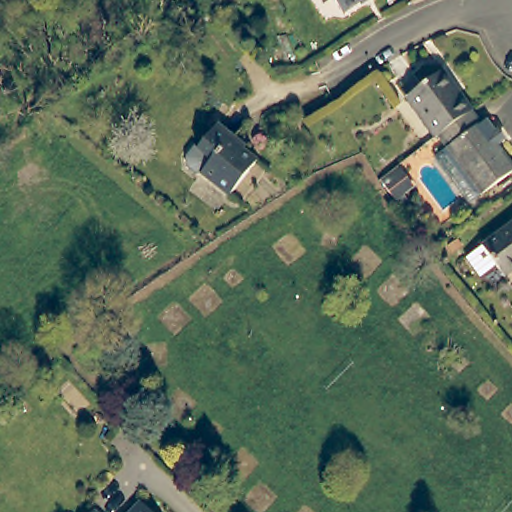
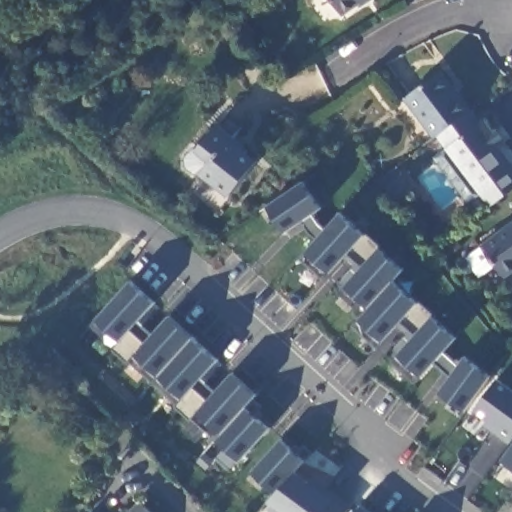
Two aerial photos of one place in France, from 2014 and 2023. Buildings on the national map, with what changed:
unchanged [(406,96),(442,70),(472,111),(464,117),(437,137),(406,96)]
unchanged [(451,183),(434,159),(446,150),(437,137),(464,117),(472,111),(482,124),(488,120),(496,131),(497,130),(506,141),(499,146),(512,164),(512,173),(480,196),(480,195),(467,205),(451,183)]
unchanged [(195,146),(198,148),(218,125),(246,149),(244,151),(257,162),(227,196),(201,173),(197,173),(188,165),(188,154),(195,146)]
unchanged [(400,194),(405,202),(396,208),(381,185),(378,181),(392,170),(396,174),(406,189),(400,194)]
new [(463,410),(439,391),(452,374),(435,358),(421,374),(413,381),(391,359),(398,351),(411,338),(396,324),(382,338),(378,344),(354,323),(363,313),(339,292),(345,284),(355,272),(341,259),(332,270),(325,278),(302,256),(307,249),(318,237),(308,231),(301,220),(284,231),(268,205),(305,181),(320,206),(312,212),(318,221),(326,226),(341,211),(404,266),(394,280),(457,337),(445,350),(458,363),(465,354),(490,375),(463,410)]
unchanged [(512,226),(512,273),(500,281),(492,271),(477,282),(462,263),(512,226)]
unchanged [(460,241),(465,247),(451,257),(447,250),(460,241)]
new [(96,317),(130,278),(156,301),(139,321),(153,334),(171,314),(217,359),(202,376),(215,390),(232,370),(257,394),(247,407),(270,427),(240,461),(217,439),(193,417),(190,420),(174,406),(177,403),(128,360),(126,363),(110,349),(113,346),(88,325),(96,317)]
new [(512,438),(504,441),(483,424),(487,419),(475,410),(495,378),(512,390),(512,438)]
new [(345,512),(284,512),(269,500),(276,491),(252,471),(279,438),(306,459),(297,470),(314,483),(317,477),(351,503),(345,512)]
new [(502,459),(512,445),(512,467),(502,459)]
unchanged [(138,498),(155,512),(127,512),(138,498)]
new [(366,512),(354,512),(358,506),(366,512)]
unchanged [(87,507),(93,512),(84,512),(87,507)]

